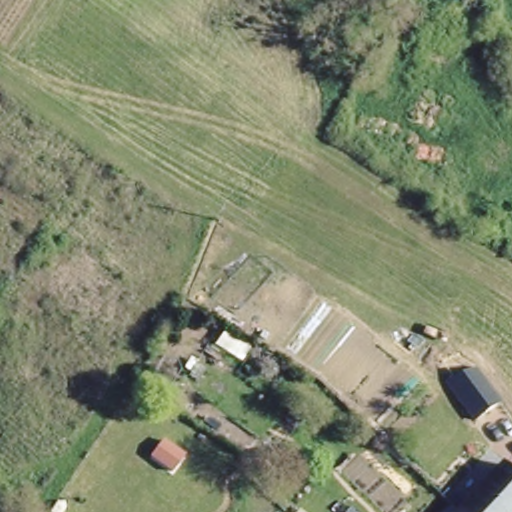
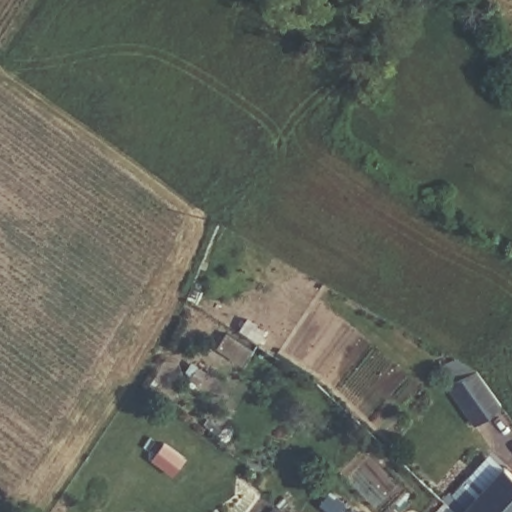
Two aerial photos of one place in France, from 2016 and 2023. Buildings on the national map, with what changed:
unchanged [(444,381),(475,368),(501,404),(474,424),(444,381)]
unchanged [(458,512),(497,469),(512,481),(512,512),(458,512)]

